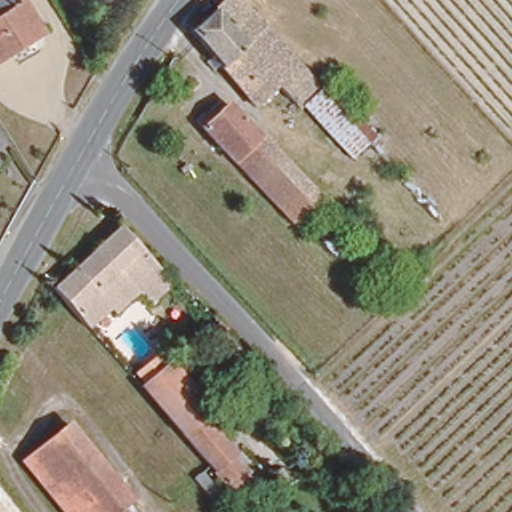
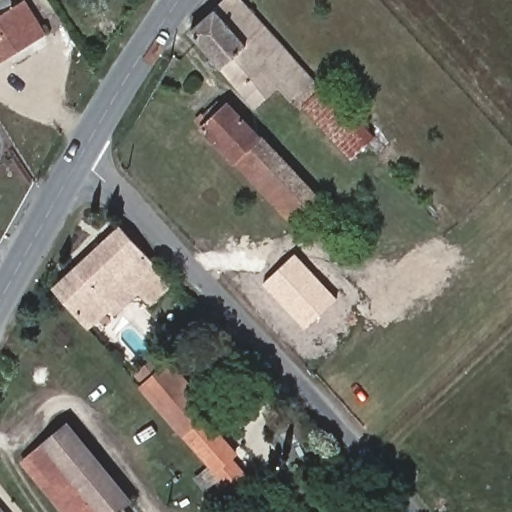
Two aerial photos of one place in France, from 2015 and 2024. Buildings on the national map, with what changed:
unchanged [(19,41),(0,53),(0,8),(12,0),(24,0),(36,20),(40,28),(19,41)]
unchanged [(320,87),(299,107),(279,83),(255,103),(190,30),(226,0),(242,0),(320,87)]
unchanged [(323,92),(371,142),(350,160),(304,107),(321,89),(323,92)]
unchanged [(205,112),(213,118),(231,102),(261,135),(264,132),(320,196),(300,215),(293,221),(199,120),(205,112)]
unchanged [(121,226),(173,283),(149,306),(137,293),(114,313),(110,308),(87,327),(54,288),(121,226)]
new [(295,253),(338,298),(305,329),(262,283),(295,253)]
unchanged [(248,370),(228,349),(237,341),(257,361),(248,370)]
unchanged [(139,388),(171,358),(213,402),(204,413),(239,450),(229,459),(251,476),(228,499),(139,388)]
unchanged [(67,424),(130,501),(121,508),(125,512),(66,512),(23,460),(67,424)]
new [(3,512),(0,512),(0,509),(3,512)]

